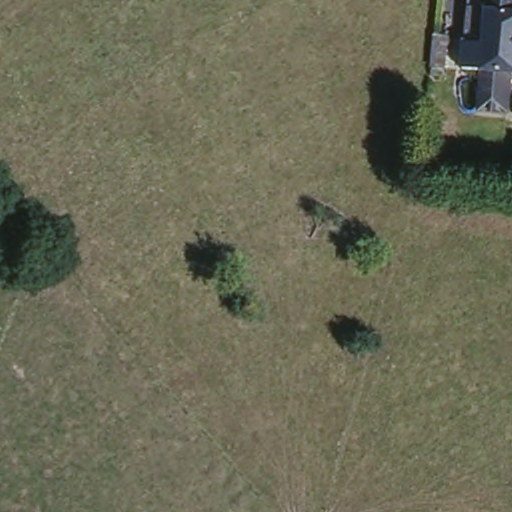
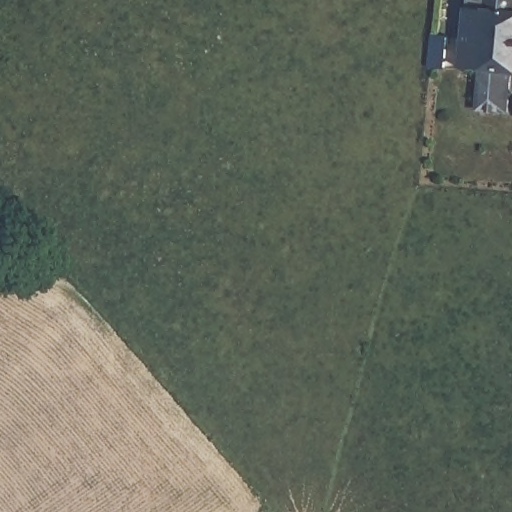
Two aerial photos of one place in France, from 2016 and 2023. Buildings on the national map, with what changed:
unchanged [(507,71),(503,110),(473,107),(478,67),(457,66),(461,39),(480,41),(480,35),(461,32),(464,6),(484,7),(485,0),(512,0),(512,71),(507,71)]
unchanged [(449,39),(447,69),(432,67),(434,37),(449,39)]

